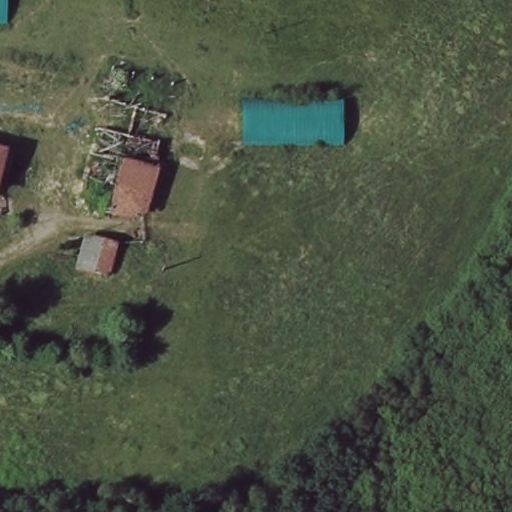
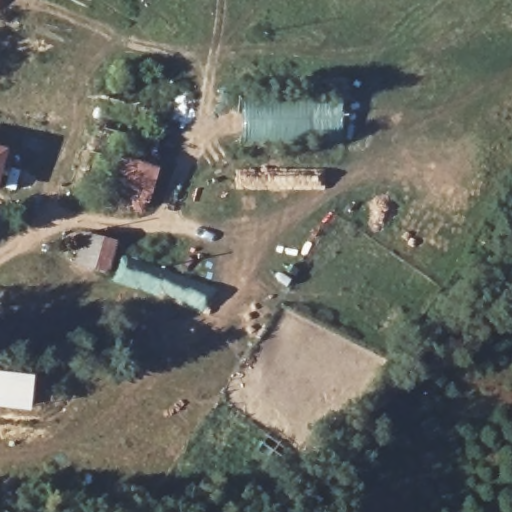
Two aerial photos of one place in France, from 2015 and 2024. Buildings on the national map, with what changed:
unchanged [(0,17),(0,0),(6,0),(6,17),(0,17)]
unchanged [(146,68),(173,75),(166,110),(140,103),(146,68)]
unchanged [(341,100),(340,139),(241,141),(239,99),(341,100)]
unchanged [(162,159),(142,217),(103,207),(120,150),(154,157),(162,159)]
unchanged [(11,162),(7,179),(0,177),(0,159),(11,162)]
unchanged [(120,242),(111,273),(76,265),(84,235),(120,242)]
new [(33,373),(30,409),(0,407),(0,370),(33,373)]

